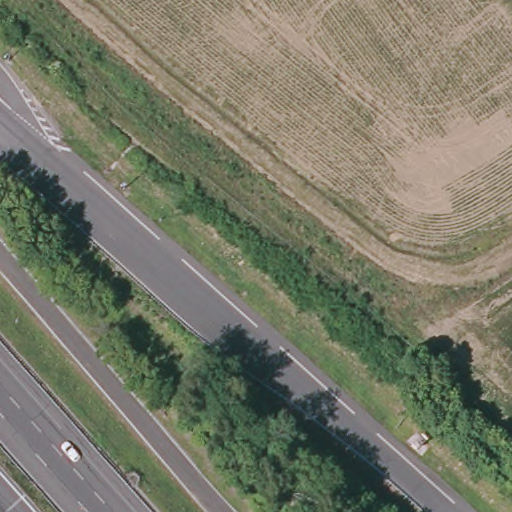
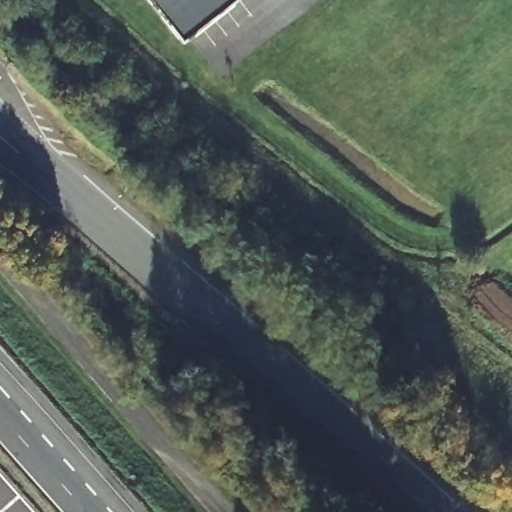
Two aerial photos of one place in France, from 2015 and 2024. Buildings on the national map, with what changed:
new [(187,35),(160,0),(232,0),(187,35)]

